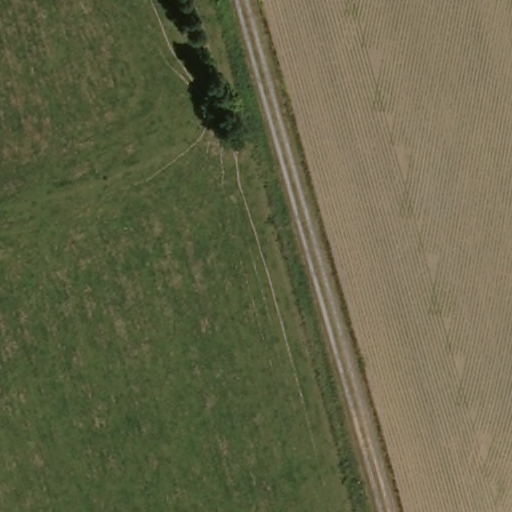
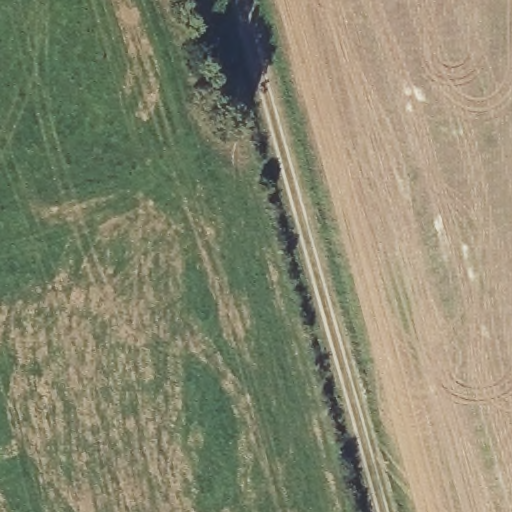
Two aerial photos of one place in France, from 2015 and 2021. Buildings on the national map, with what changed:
[]

